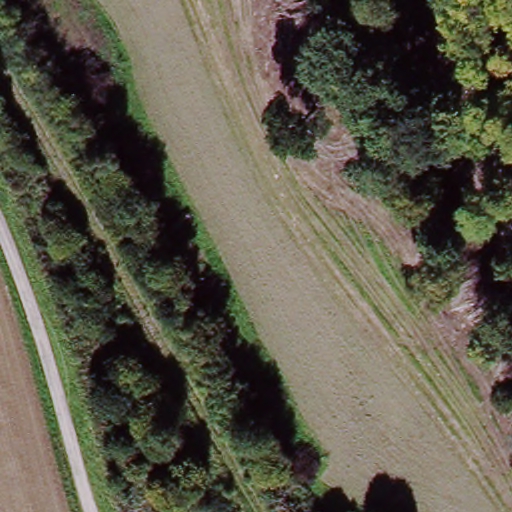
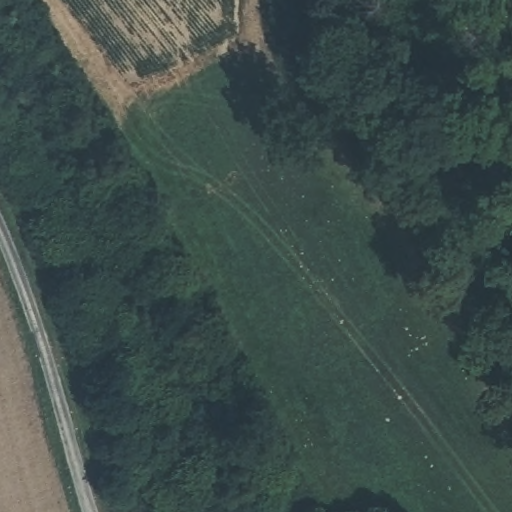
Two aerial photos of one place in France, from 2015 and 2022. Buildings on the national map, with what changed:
[]

